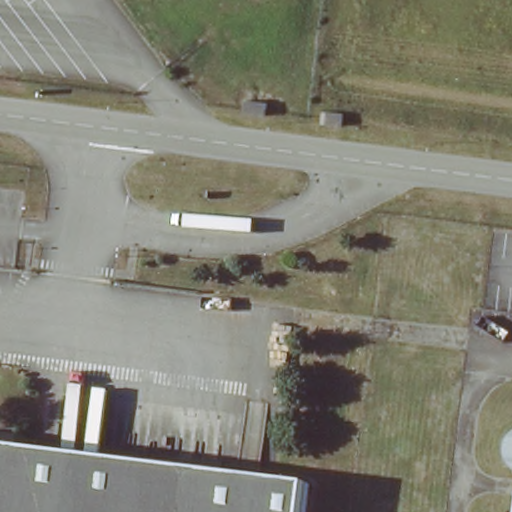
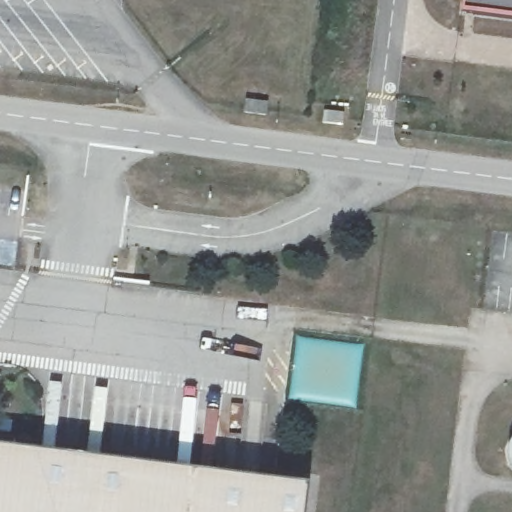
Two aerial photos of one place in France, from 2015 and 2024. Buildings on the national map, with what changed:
new [(464,0),(512,0),(512,18),(462,11),(464,0)]
unchanged [(269,100),(267,112),(246,110),(247,97),(269,100)]
unchanged [(346,110),(344,122),(324,120),(326,108),(346,110)]
unchanged [(0,447),(317,494),(314,512),(0,512),(0,447)]

